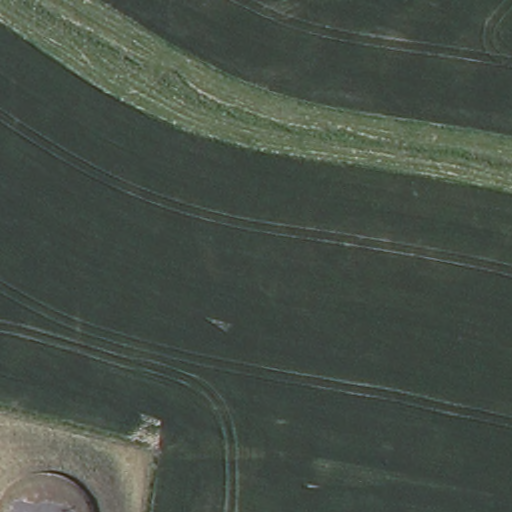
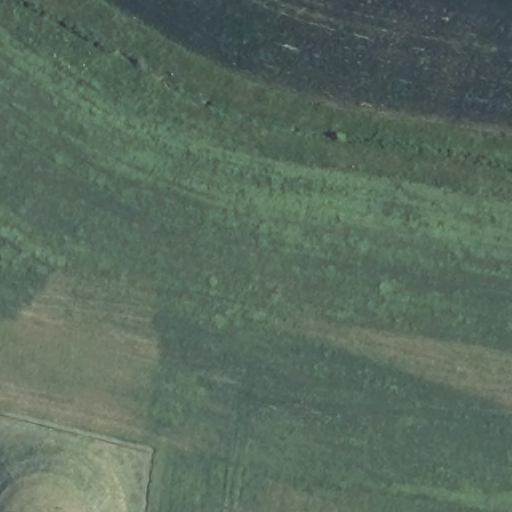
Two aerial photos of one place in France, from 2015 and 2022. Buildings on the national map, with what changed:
[]

